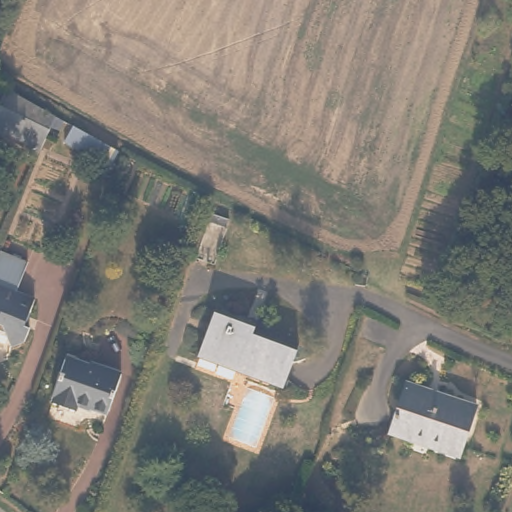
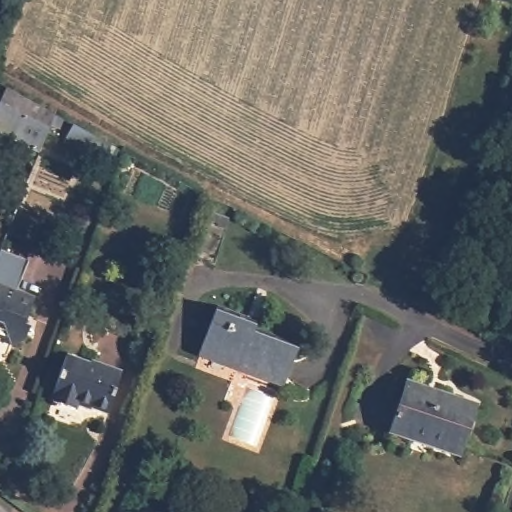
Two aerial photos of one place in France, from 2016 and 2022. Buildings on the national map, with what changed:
unchanged [(34,111),(51,121),(35,159),(9,145),(0,140),(0,100),(4,93),(34,111)]
unchanged [(99,155),(90,150),(66,136),(74,121),(97,133),(107,138),(99,155)]
unchanged [(27,323),(33,325),(28,340),(15,344),(10,335),(0,331),(0,259),(5,248),(32,259),(20,288),(37,295),(27,323)]
unchanged [(196,346),(212,300),(241,310),(225,357),(196,346)]
unchanged [(280,376),(263,370),(225,357),(241,310),(251,313),(249,321),(277,331),(295,337),(280,376)]
unchanged [(93,359),(95,356),(123,366),(110,406),(81,397),(79,403),(57,397),(60,390),(56,389),(70,349),(93,359)]
unchanged [(473,402),(458,447),(411,430),(408,436),(385,428),(404,376),(473,402)]

